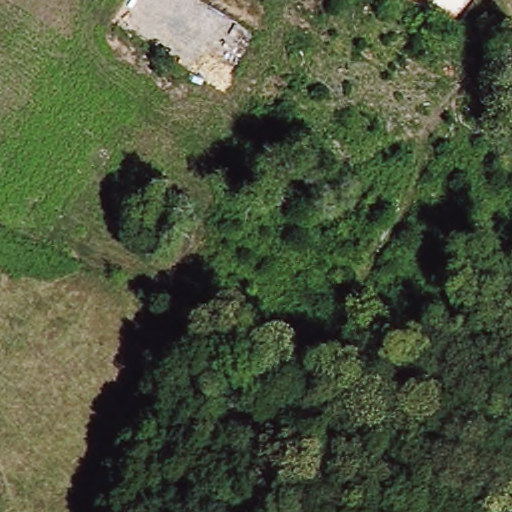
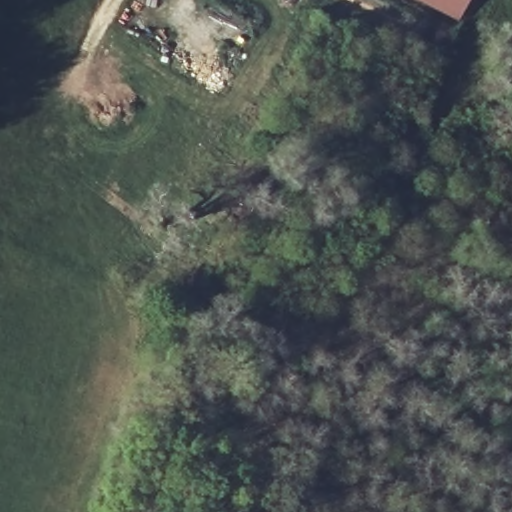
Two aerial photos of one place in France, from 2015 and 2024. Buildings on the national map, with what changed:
new [(457,21),(419,0),(469,0),(457,21)]

